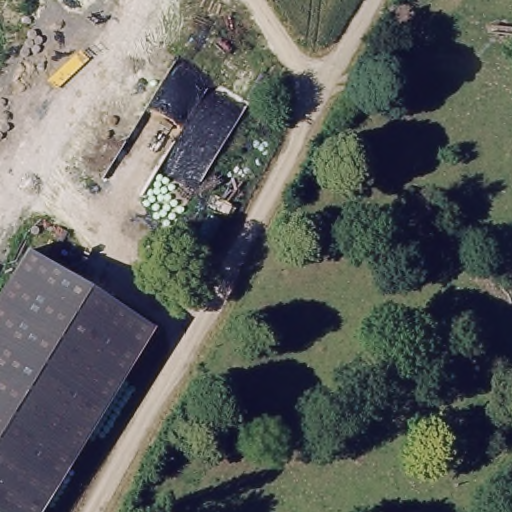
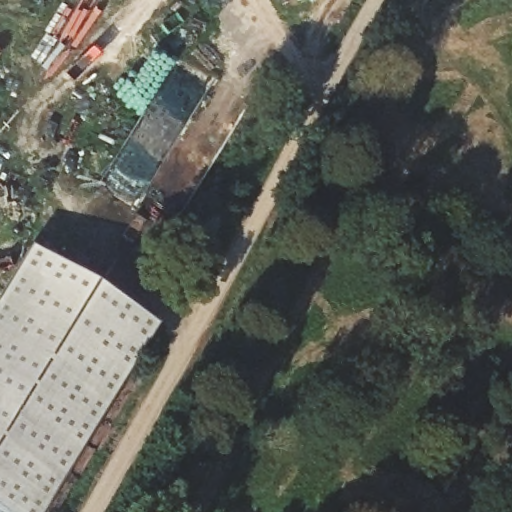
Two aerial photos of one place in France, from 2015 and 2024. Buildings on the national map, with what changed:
unchanged [(0,298),(31,247),(161,333),(44,512),(0,512),(0,298)]

